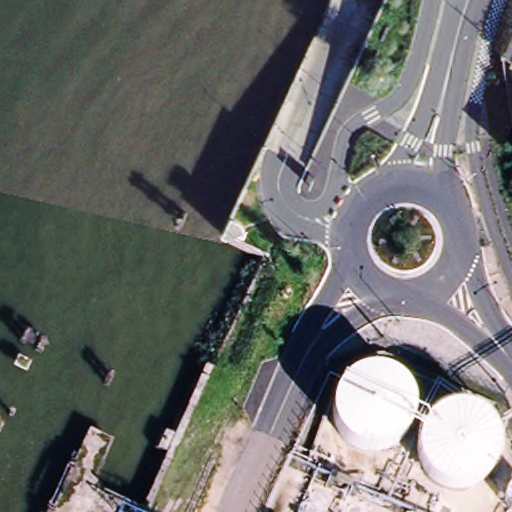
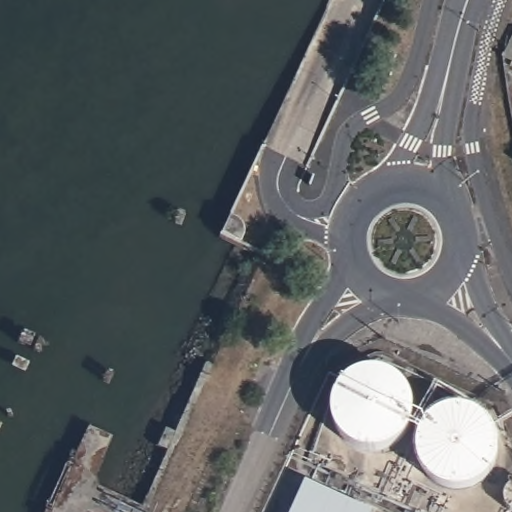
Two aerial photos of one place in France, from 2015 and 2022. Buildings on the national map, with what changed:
new [(307,482),(374,512),(293,512),(307,482)]

